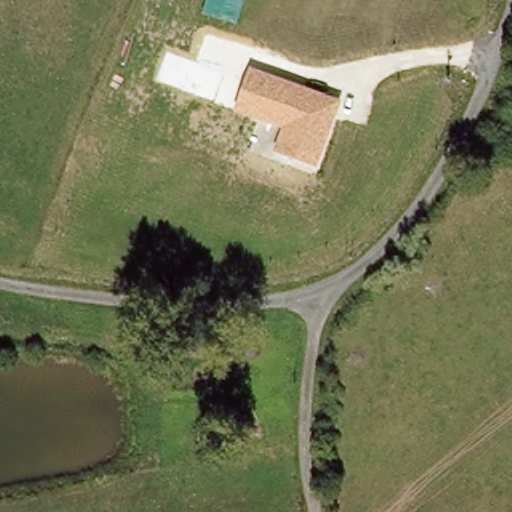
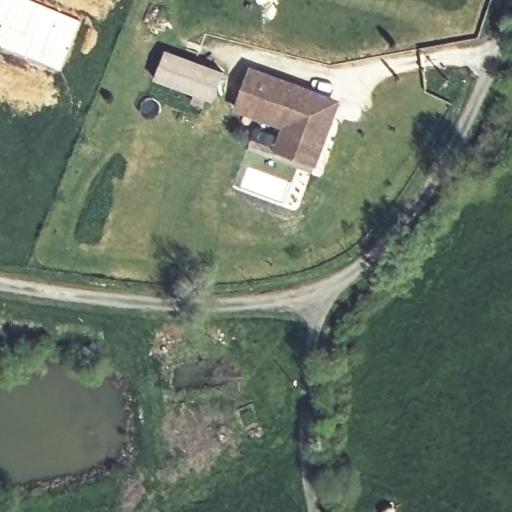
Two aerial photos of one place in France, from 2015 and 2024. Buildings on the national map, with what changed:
new [(60,71),(0,47),(0,0),(32,0),(80,20),(60,71)]
new [(225,72),(214,102),(154,80),(165,51),(225,72)]
unchanged [(341,101),(316,167),(274,150),(282,127),(233,110),(249,67),(341,101)]

